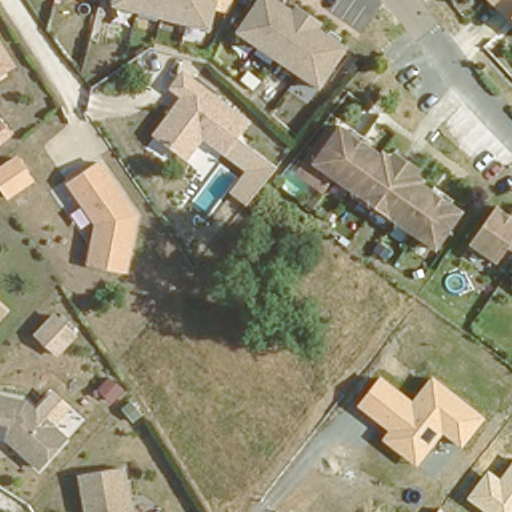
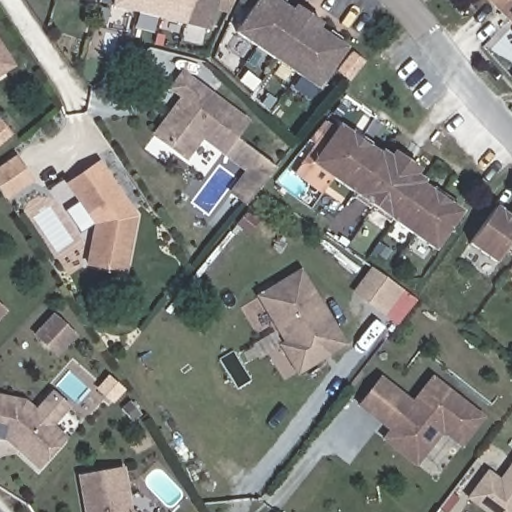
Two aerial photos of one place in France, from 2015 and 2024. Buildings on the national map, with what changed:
unchanged [(214,27),(196,23),(117,8),(118,0),(219,0),(219,2),(214,27)]
unchanged [(237,32),(260,0),(276,0),(295,15),(300,8),(324,26),(319,32),(346,51),(317,91),(237,32)]
unchanged [(509,20),(505,22),(503,21),(493,11),(488,6),(482,0),(512,0),(512,22),(509,20)]
unchanged [(13,62),(0,71),(0,42),(13,62)]
unchanged [(185,96),(174,87),(184,73),(246,122),(234,137),(230,142),(224,151),(202,135),(186,156),(156,133),(175,109),(185,96)]
new [(0,116),(15,131),(0,145),(0,116)]
unchanged [(455,212),(466,220),(439,257),(337,184),(328,197),(303,179),(336,132),(342,136),(344,133),(355,141),(358,136),(377,150),(374,154),(384,161),(386,159),(394,165),(399,159),(420,174),(415,180),(427,189),(426,191),(436,198),(439,194),(458,208),(455,212)]
unchanged [(224,151),(230,142),(234,137),(274,167),(247,204),(231,192),(245,174),(221,155),(224,151)]
new [(15,156),(33,182),(8,200),(0,187),(0,166),(15,156)]
unchanged [(99,160),(136,213),(126,267),(125,268),(89,261),(92,242),(96,221),(69,180),(99,160)]
unchanged [(490,267),(464,250),(479,227),(480,226),(489,214),(493,217),(498,219),(502,222),(503,222),(509,227),(512,229),(512,259),(501,252),(490,267)]
new [(370,267),(416,301),(397,326),(351,293),(370,267)]
new [(296,377),(277,345),(282,342),(255,295),(300,268),(348,346),(296,377)]
unchanged [(2,314),(0,316),(0,312),(2,314)]
unchanged [(59,357),(33,335),(53,312),(79,335),(59,357)]
unchanged [(461,448),(442,433),(417,466),(381,437),(387,430),(358,406),(383,375),(412,398),(431,374),(485,417),(461,448)]
unchanged [(0,435),(0,395),(26,400),(66,436),(40,466),(20,448),(8,437),(0,435)]
unchanged [(467,500),(489,469),(500,478),(512,463),(512,512),(484,512),(467,500)]
unchanged [(78,475),(121,467),(129,511),(130,512),(85,512),(78,475)]

